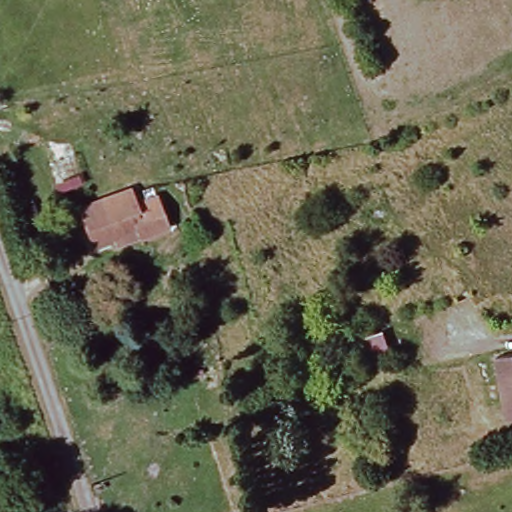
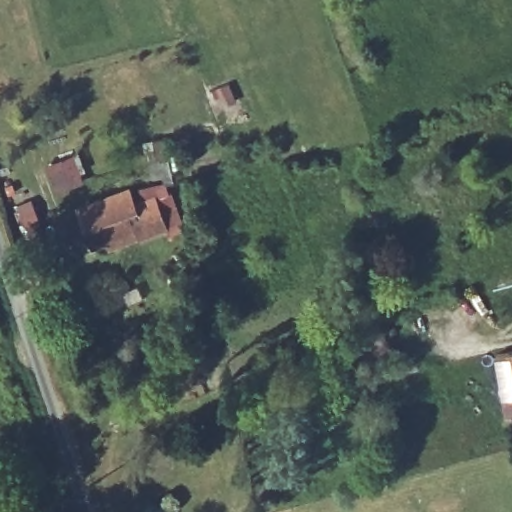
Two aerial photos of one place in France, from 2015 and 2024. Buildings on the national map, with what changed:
unchanged [(90,253),(75,210),(100,200),(128,189),(132,199),(130,200),(134,205),(155,197),(165,225),(136,236),(116,243),(90,253)]
unchanged [(356,362),(346,324),(369,317),(373,331),(385,328),(392,353),(356,362)]
unchanged [(494,360),(512,357),(512,421),(503,422),(494,360)]

